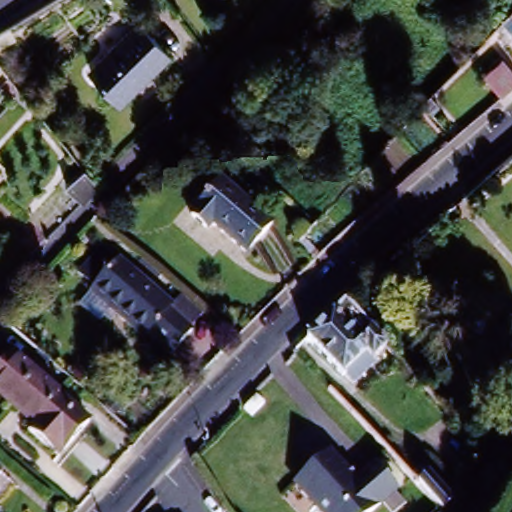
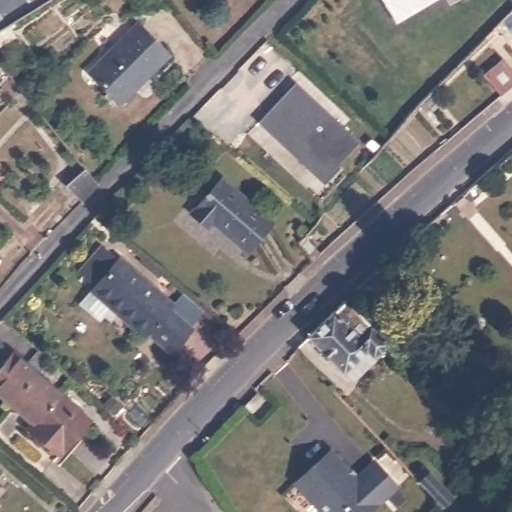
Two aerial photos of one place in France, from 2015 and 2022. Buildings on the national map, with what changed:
new [(381,0),(431,0),(394,21),(381,0)]
new [(446,0),(397,28),(394,21),(431,0),(446,0)]
unchanged [(498,25),(507,16),(512,11),(512,41),(498,25)]
unchanged [(162,58),(114,108),(84,78),(131,28),(162,58)]
unchanged [(496,101),(480,81),(498,66),(512,83),(512,87),(496,101)]
unchanged [(0,81),(0,67),(7,76),(0,81)]
new [(297,85),(360,144),(333,172),(337,176),(325,188),(259,126),(262,123),(297,85)]
unchanged [(83,206),(66,190),(85,169),(100,187),(83,206)]
unchanged [(265,221),(239,251),(204,221),(199,226),(183,212),(214,177),(265,221)]
unchanged [(165,345),(142,325),(138,328),(111,305),(106,311),(99,305),(94,310),(75,294),(85,282),(115,248),(168,295),(178,283),(197,300),(200,303),(187,318),(165,345)]
unchanged [(390,342),(376,355),(369,348),(346,370),(337,377),(304,340),(311,333),(347,297),(390,342)]
unchanged [(0,381),(17,361),(43,383),(18,413),(0,397),(0,381)]
unchanged [(43,383),(94,428),(64,463),(34,436),(38,431),(18,413),(43,383)]
unchanged [(267,404),(256,415),(250,409),(260,397),(267,404)]
unchanged [(396,484),(366,512),(322,512),(294,481),(303,472),(328,449),(355,477),(373,459),(396,484)]
unchanged [(428,469),(453,496),(443,507),(417,479),(428,469)]
unchanged [(0,476),(0,474),(1,475),(0,476)]

